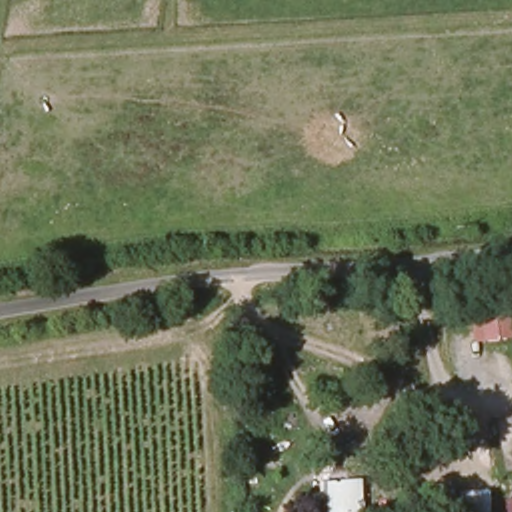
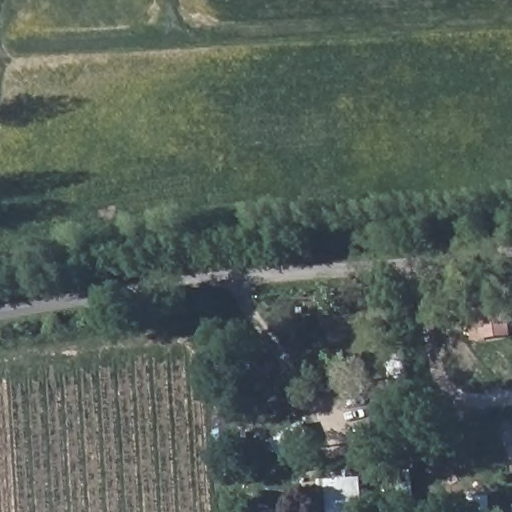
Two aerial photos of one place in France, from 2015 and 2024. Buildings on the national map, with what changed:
unchanged [(325,512),(321,484),(357,477),(361,512),(325,512)]

